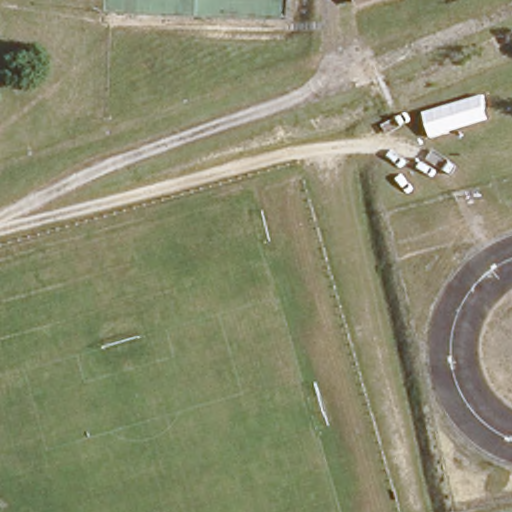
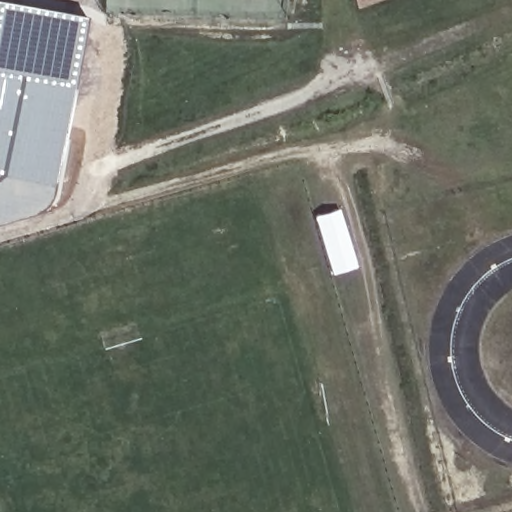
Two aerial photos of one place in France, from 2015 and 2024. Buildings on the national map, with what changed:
new [(55,186),(54,195),(50,201),(43,209),(33,213),(0,223),(0,0),(5,0),(85,16),(73,86),(55,186)]
demolished [(354,0),(370,0),(355,5),(354,0)]

